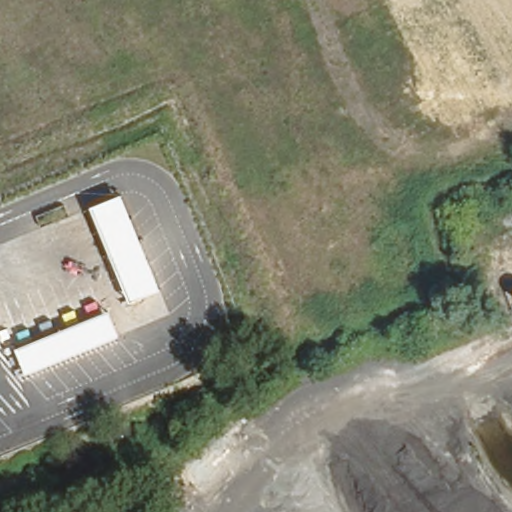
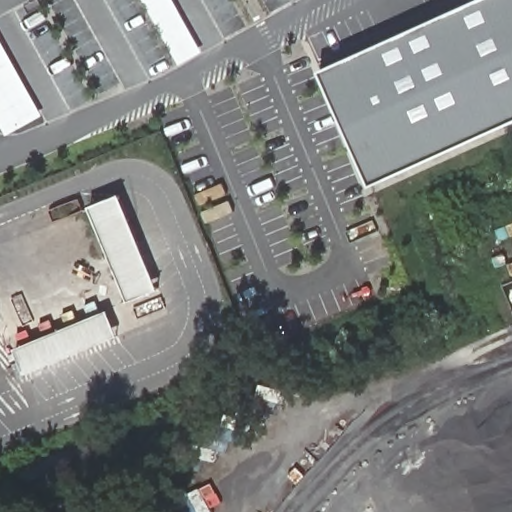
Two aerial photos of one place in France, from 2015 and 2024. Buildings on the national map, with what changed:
new [(142,0),(173,0),(201,51),(178,64),(142,0)]
new [(331,73),(498,0),(512,0),(512,131),(381,190),(331,73)]
new [(6,134),(0,124),(0,39),(43,114),(6,134)]
unchanged [(129,301),(90,206),(120,193),(161,288),(129,301)]
unchanged [(26,373),(15,348),(109,310),(119,335),(26,373)]

